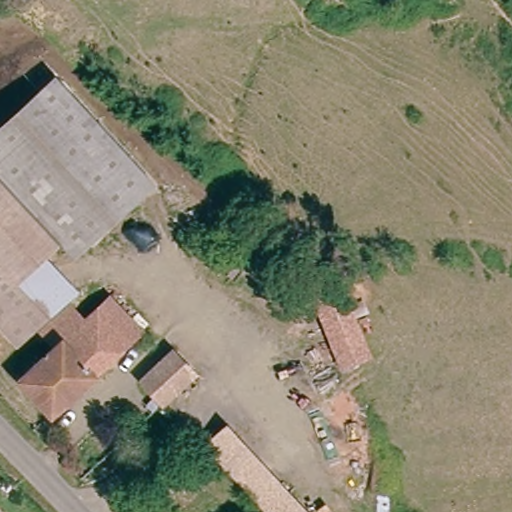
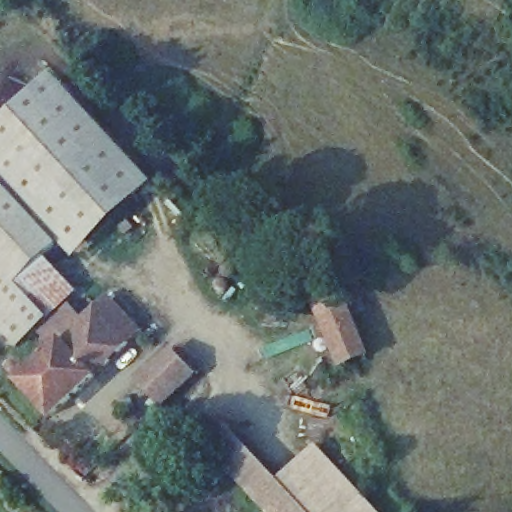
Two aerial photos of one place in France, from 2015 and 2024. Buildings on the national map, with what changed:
unchanged [(82,251),(0,165),(0,129),(48,86),(150,189),(82,251)]
unchanged [(69,239),(52,255),(26,278),(0,251),(0,168),(69,239)]
unchanged [(26,278),(52,255),(87,292),(54,322),(21,287),(0,308),(0,251),(26,278)]
unchanged [(54,322),(51,326),(31,345),(0,313),(0,308),(21,287),(54,322)]
unchanged [(70,409),(35,371),(66,342),(52,327),(63,317),(84,299),(98,314),(124,290),(157,325),(70,409)]
unchanged [(314,303),(344,292),(348,303),(363,300),(368,313),(355,316),(372,357),(339,368),(314,303)]
unchanged [(167,406),(144,384),(178,351),(201,375),(167,406)]
unchanged [(307,512),(265,512),(206,455),(227,433),(307,512)]
new [(276,482),(316,445),(378,512),(307,512),(276,482)]

